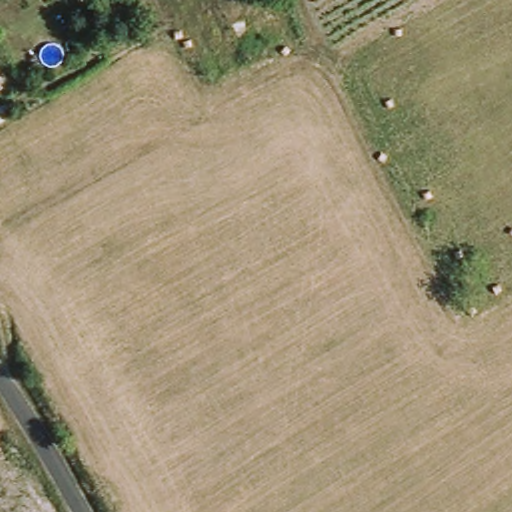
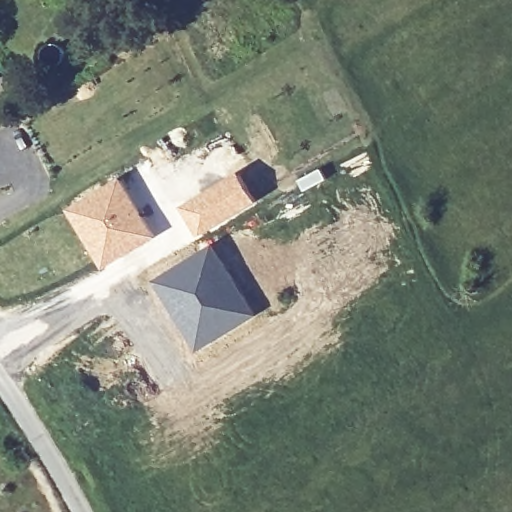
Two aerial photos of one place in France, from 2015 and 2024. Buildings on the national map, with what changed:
new [(239,170),(259,201),(201,236),(181,206),(239,170)]
new [(121,175),(158,235),(104,268),(67,209),(121,175)]
new [(213,242),(258,313),(200,350),(153,280),(213,242)]

